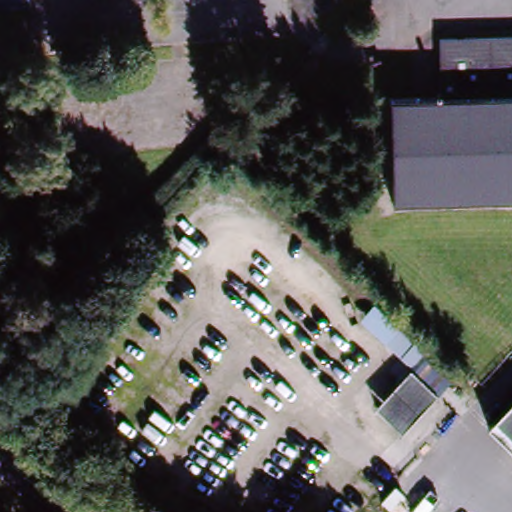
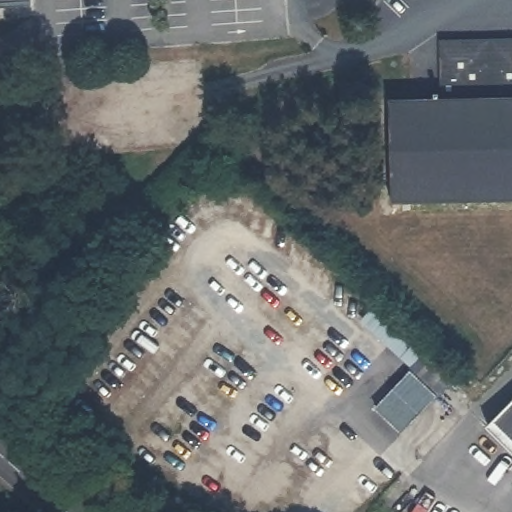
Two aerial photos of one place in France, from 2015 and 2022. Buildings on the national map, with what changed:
unchanged [(35,3),(0,5),(0,0),(34,0),(35,3)]
unchanged [(395,104),(440,103),(440,97),(447,97),(446,45),(512,43),(512,205),(397,207),(395,104)]
unchanged [(438,400),(403,436),(377,410),(412,375),(438,400)]
unchanged [(512,407),(512,445),(493,426),(512,407)]

